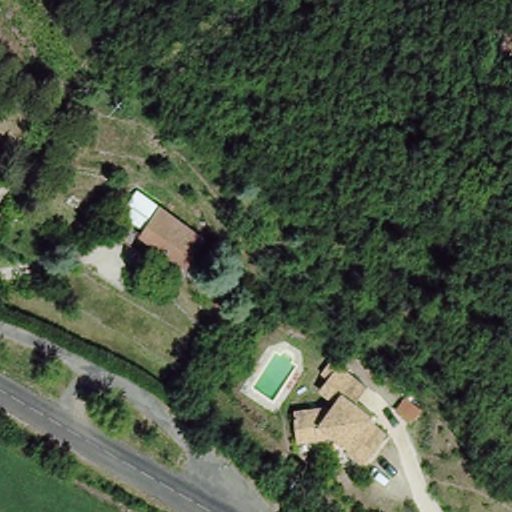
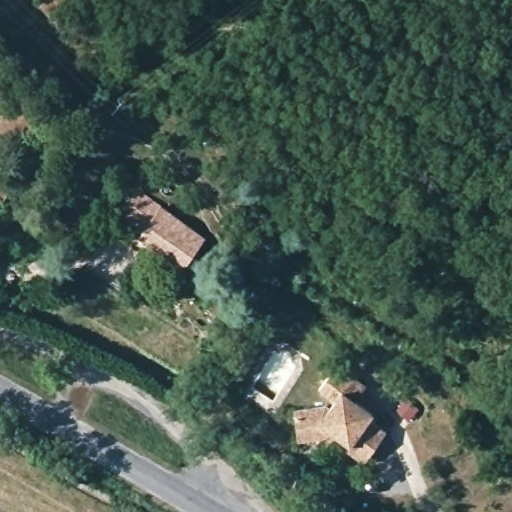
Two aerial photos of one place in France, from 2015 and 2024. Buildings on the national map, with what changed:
unchanged [(209,234),(191,265),(143,229),(162,201),(209,234)]
unchanged [(68,210),(61,225),(44,219),(51,203),(68,210)]
unchanged [(327,407),(312,395),(336,372),(397,425),(358,466),(339,446),(293,448),(290,411),(327,407)]

